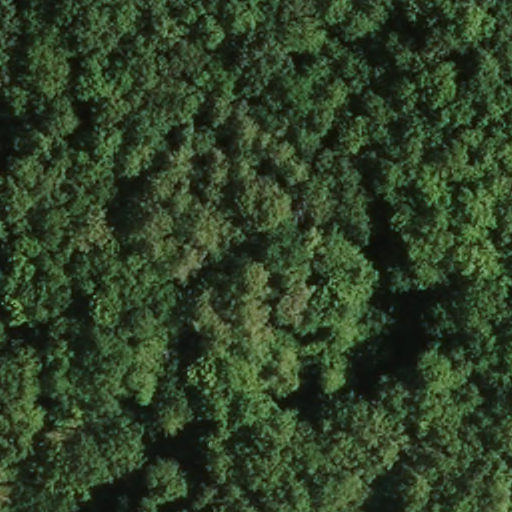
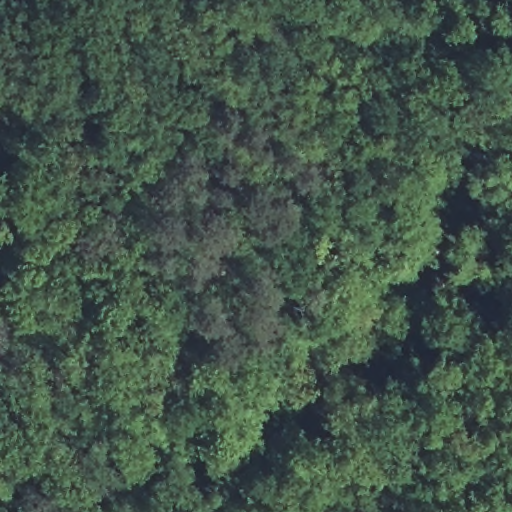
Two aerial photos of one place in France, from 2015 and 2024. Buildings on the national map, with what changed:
[]

